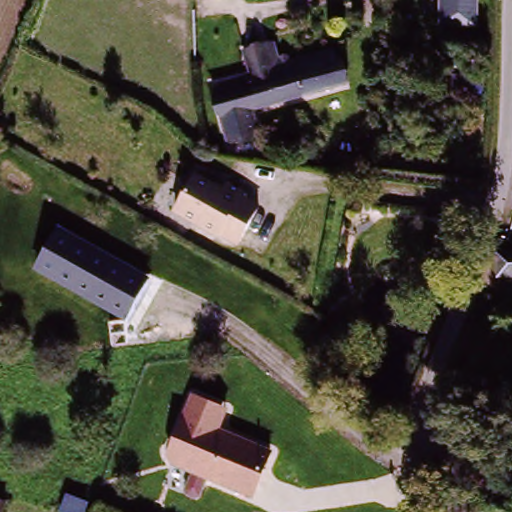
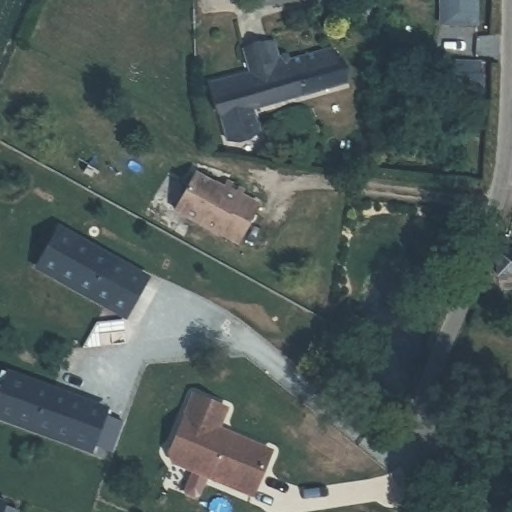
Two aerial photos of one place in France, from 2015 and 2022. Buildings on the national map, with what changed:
unchanged [(437,21),(438,0),(477,0),(477,22),(437,21)]
unchanged [(228,149),(207,67),(255,55),(262,79),(328,60),(335,89),(269,106),(276,136),(228,149)]
unchanged [(198,171),(258,206),(237,247),(175,213),(198,171)]
unchanged [(56,225),(150,278),(126,320),(33,269),(56,225)]
unchanged [(495,258),(512,256),(512,277),(493,278),(495,258)]
new [(120,406),(117,413),(110,409),(94,455),(0,420),(0,380),(5,366),(120,406)]
unchanged [(228,410),(218,432),(272,454),(252,499),(162,461),(190,394),(228,410)]
unchanged [(8,499),(5,512),(0,512),(0,496),(8,499)]

